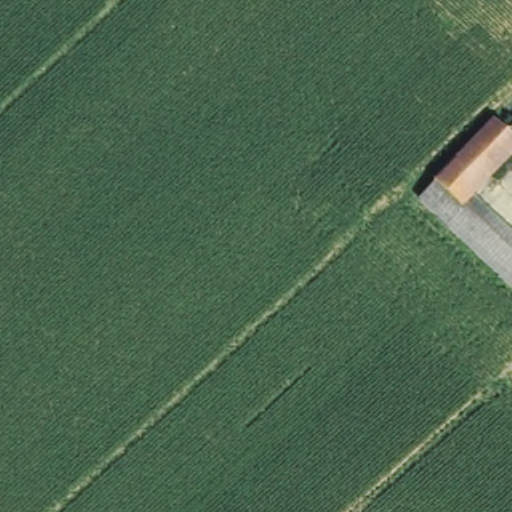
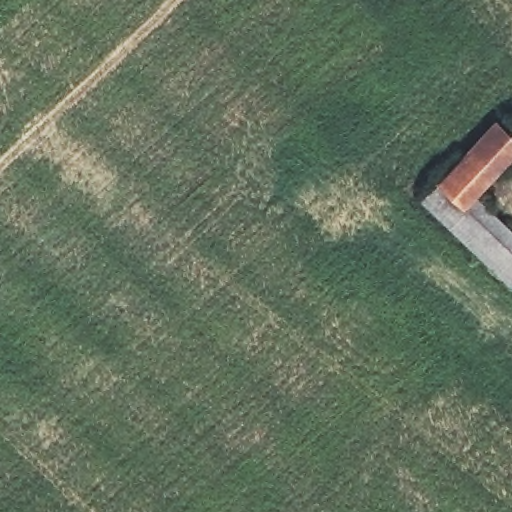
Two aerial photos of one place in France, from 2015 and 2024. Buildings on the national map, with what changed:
unchanged [(492,114),(512,131),(512,151),(463,201),(512,246),(512,277),(509,279),(418,195),(492,114)]

